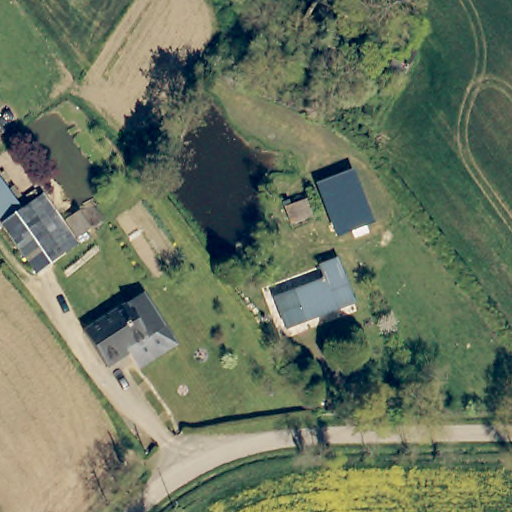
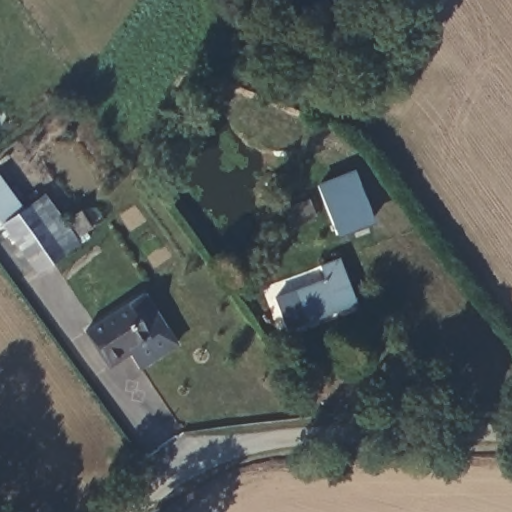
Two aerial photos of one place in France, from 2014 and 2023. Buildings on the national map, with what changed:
unchanged [(337,239),(317,183),(353,168),(376,224),(337,239)]
unchanged [(0,227),(0,180),(23,212),(1,228),(0,227)]
unchanged [(42,198),(75,245),(35,275),(1,228),(23,212),(42,198)]
unchanged [(315,323),(287,334),(276,305),(326,286),(321,273),(340,266),(355,308),(315,323)]
unchanged [(113,357),(107,361),(109,364),(93,374),(70,337),(130,300),(151,334),(161,351),(129,370),(123,374),(113,357)]

